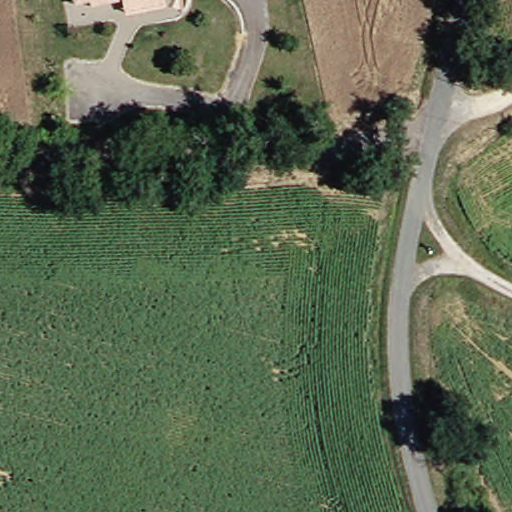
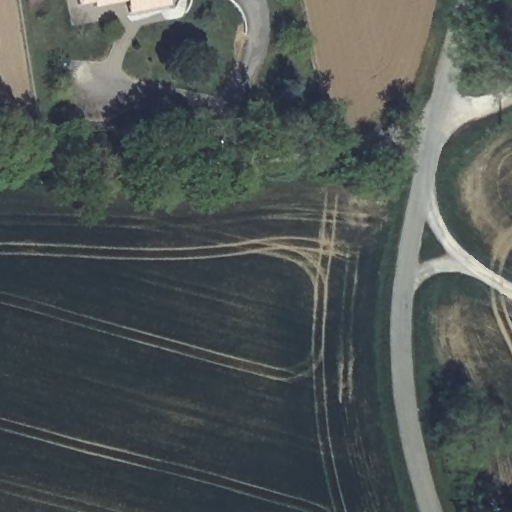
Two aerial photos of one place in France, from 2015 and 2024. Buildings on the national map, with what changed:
unchanged [(126,4),(99,11),(97,5),(80,9),(78,0),(171,0),(171,4),(129,14),(126,4)]

